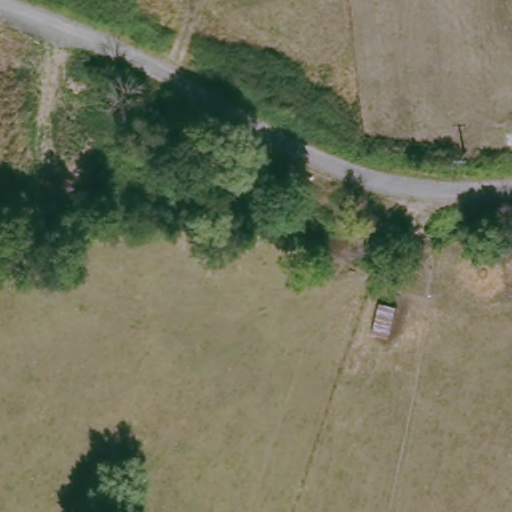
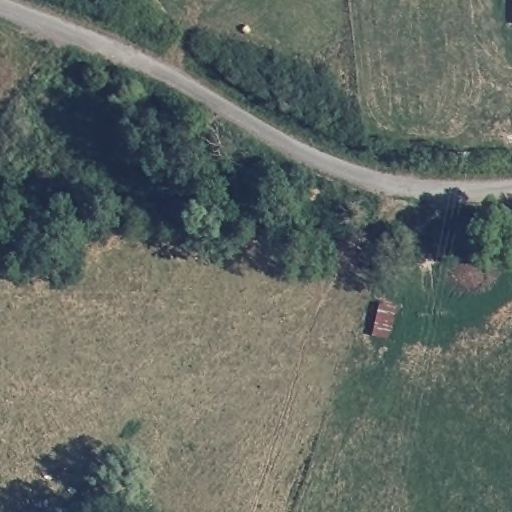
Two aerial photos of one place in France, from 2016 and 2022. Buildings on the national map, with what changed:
unchanged [(507,134),(507,121),(512,120),(512,134),(507,134)]
unchanged [(400,302),(393,333),(372,332),(380,300),(400,302)]

